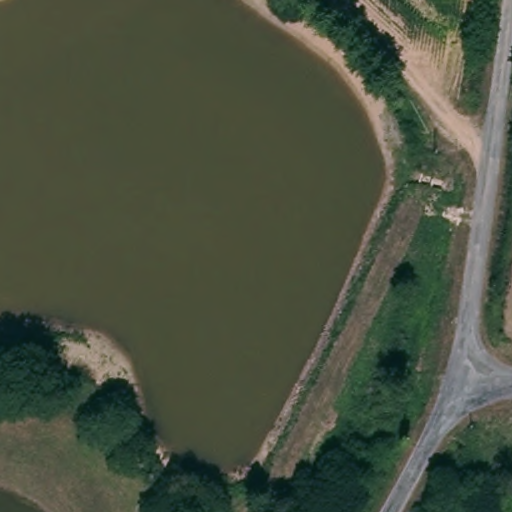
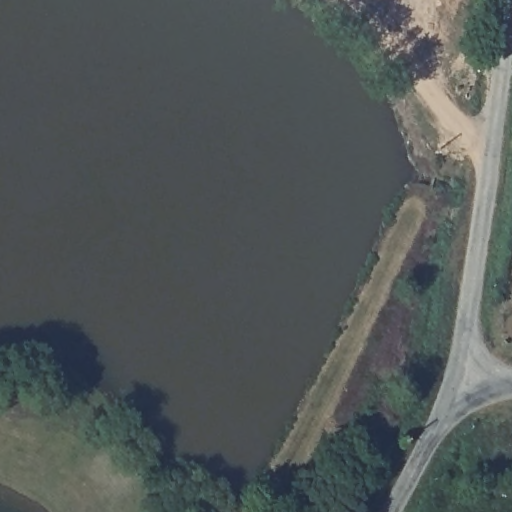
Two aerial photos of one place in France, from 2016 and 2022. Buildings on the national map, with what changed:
[]

